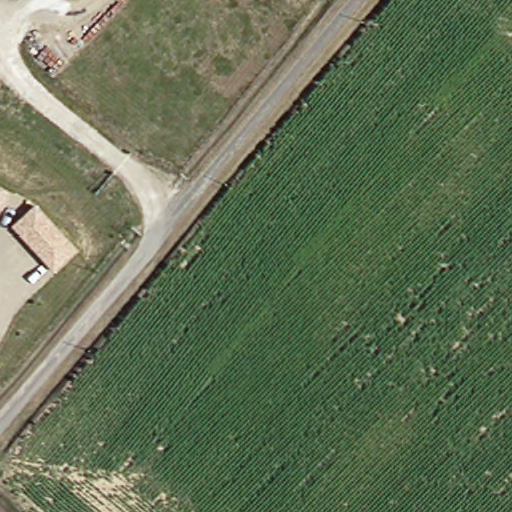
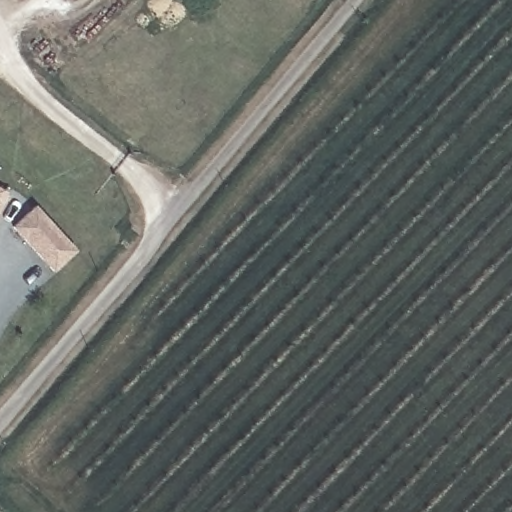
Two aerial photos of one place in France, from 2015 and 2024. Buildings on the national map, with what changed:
unchanged [(9,191),(0,208),(0,186),(9,191)]
unchanged [(14,227),(35,208),(76,250),(54,269),(14,227)]

